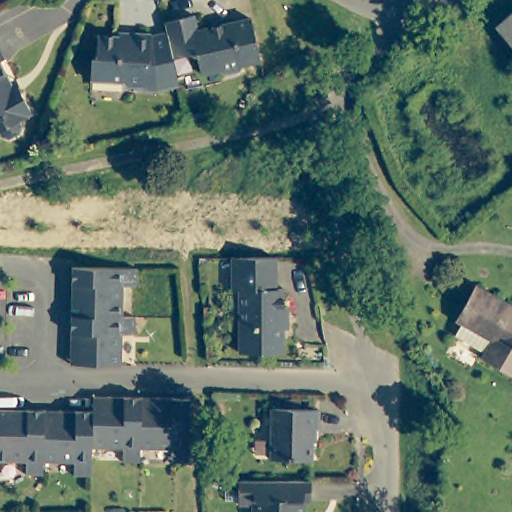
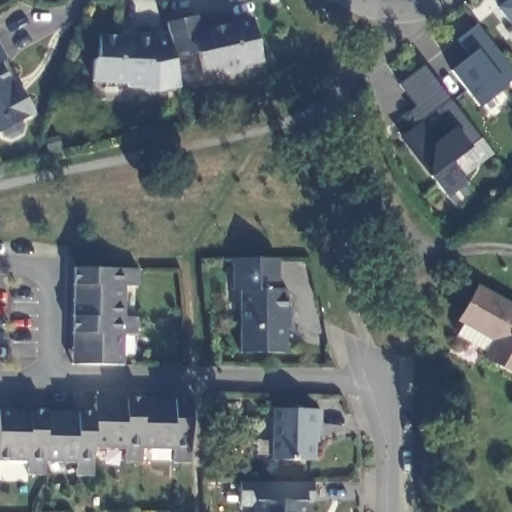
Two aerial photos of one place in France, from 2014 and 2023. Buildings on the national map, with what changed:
new [(505,0),(512,0),(512,28),(496,7),(505,0)]
unchanged [(197,12),(200,27),(214,24),(225,22),(253,16),(263,59),(247,63),(241,70),(227,73),(221,69),(204,72),(199,50),(175,56),(169,29),(167,20),(197,12)]
demolished [(512,15),(512,42),(499,26),(512,15)]
new [(479,106),(450,70),(468,54),(456,41),(477,22),(512,69),(512,79),(504,85),(479,106)]
unchanged [(175,56),(181,84),(159,89),(146,87),(145,84),(128,84),(124,79),(93,78),(93,58),(99,51),(100,32),(131,33),(136,31),(152,31),(169,29),(175,56)]
unchanged [(22,88),(35,111),(21,118),(22,131),(12,136),(4,134),(2,130),(0,131),(0,44),(7,56),(2,59),(13,80),(19,76),(24,87),(22,88)]
new [(463,176),(468,182),(463,186),(472,196),(453,208),(446,198),(428,177),(400,137),(417,123),(408,113),(416,107),(398,86),(423,63),(494,153),(463,176)]
unchanged [(287,331),(286,354),(241,355),(241,293),(235,293),(235,274),(235,260),(279,259),(279,273),(279,290),(286,291),(286,309),(291,308),(291,320),(291,331),(287,331)]
unchanged [(139,264),(138,282),(125,281),(125,312),(138,312),(138,330),(124,330),(123,360),(72,359),(73,311),(74,262),(139,264)]
unchanged [(460,319),(479,284),(512,304),(512,371),(485,356),(488,350),(458,334),(464,322),(460,319)]
unchanged [(143,392),(173,393),(192,393),(191,452),(190,459),(177,459),(173,459),(172,445),(142,444),(142,454),(142,458),(124,457),(124,444),(94,444),(94,457),(94,472),(75,471),(75,458),(45,458),(45,459),(45,470),(28,469),(27,457),(0,456),(0,405),(31,405),(46,406),(94,407),(95,392),(143,392)]
unchanged [(321,427),(315,427),(314,457),(271,457),(273,405),(322,406),(321,427)]
unchanged [(306,498),(306,512),(255,512),(256,502),(240,502),(240,478),(313,478),(313,498),(306,498)]

